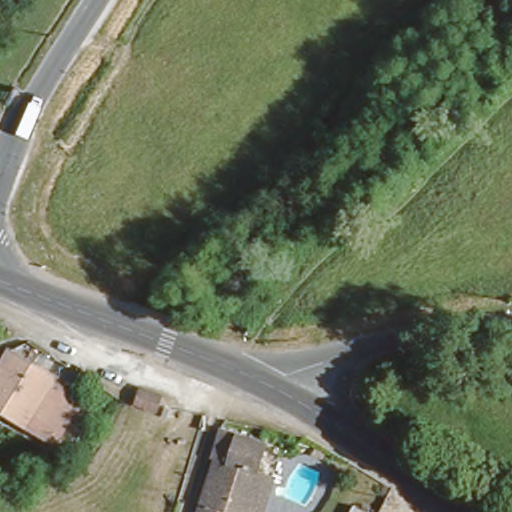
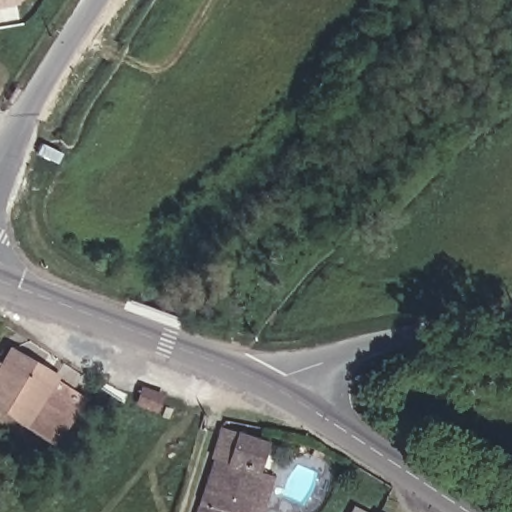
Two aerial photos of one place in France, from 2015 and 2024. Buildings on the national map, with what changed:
new [(17,5),(0,9),(0,0),(20,0),(17,5)]
unchanged [(0,362),(7,350),(51,379),(62,363),(80,374),(81,375),(70,390),(83,398),(60,430),(31,410),(18,428),(0,416),(0,362)]
unchanged [(206,454),(215,423),(264,437),(257,465),(265,467),(256,498),(244,494),(239,512),(199,512),(214,457),(206,454)]

